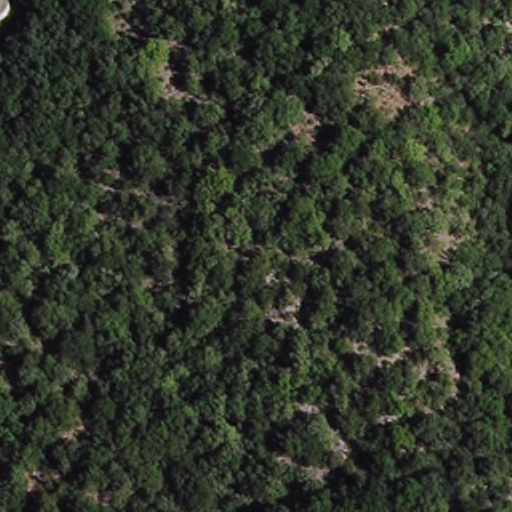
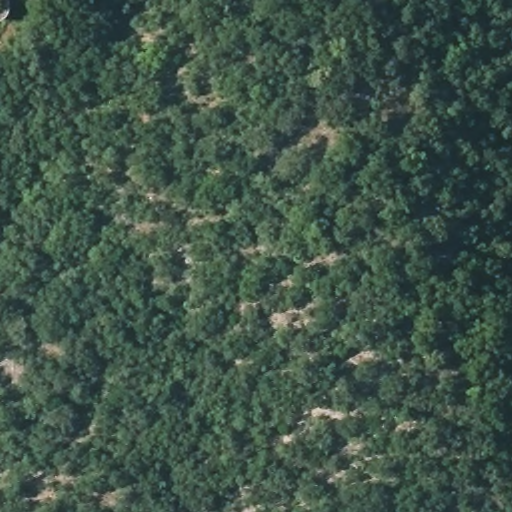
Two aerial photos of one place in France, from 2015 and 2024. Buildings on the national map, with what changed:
unchanged [(0,0),(13,0),(0,28),(0,0)]

